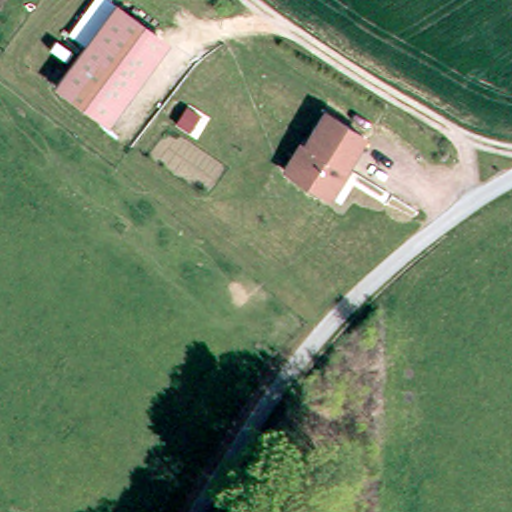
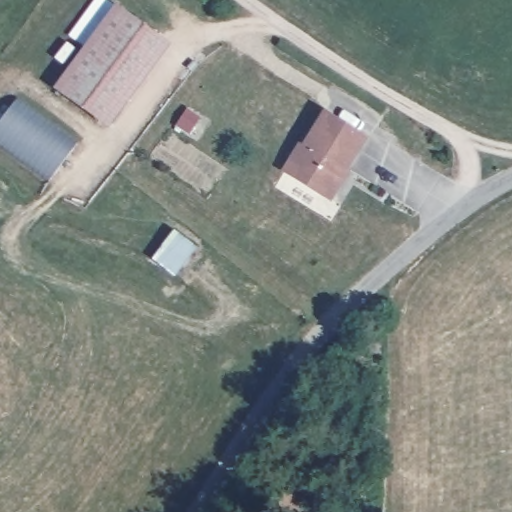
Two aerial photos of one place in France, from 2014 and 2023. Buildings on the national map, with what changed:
unchanged [(104,126),(62,96),(68,87),(122,14),(163,45),(110,118),(104,126)]
new [(77,139),(48,181),(0,146),(0,121),(16,96),(77,139)]
unchanged [(321,201),(316,197),(279,170),(300,142),(303,144),(324,116),(360,143),(339,172),(341,174),(321,201)]

